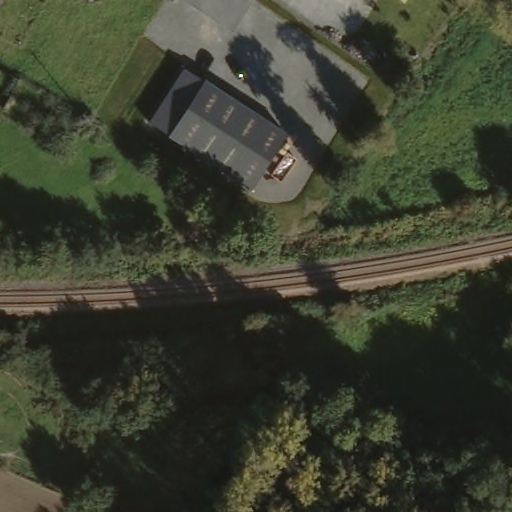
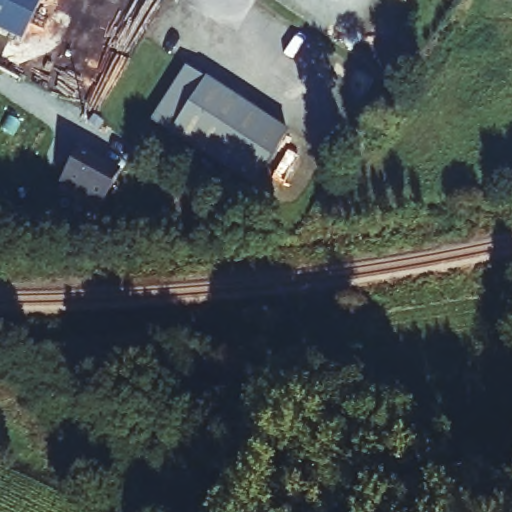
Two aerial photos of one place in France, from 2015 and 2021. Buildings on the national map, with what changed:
new [(0,36),(0,0),(42,0),(19,46),(0,36)]
unchanged [(205,80),(206,79),(288,134),(251,189),(167,137),(149,124),(185,69),(205,80)]
new [(59,184),(80,148),(121,172),(99,208),(59,184)]

